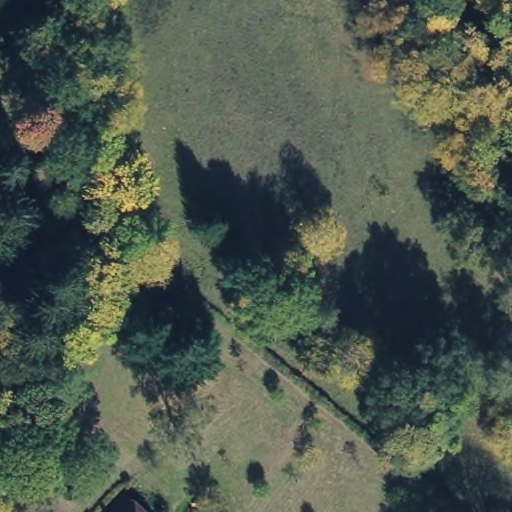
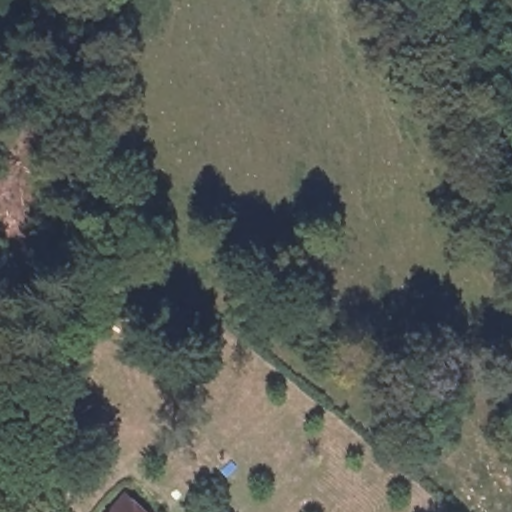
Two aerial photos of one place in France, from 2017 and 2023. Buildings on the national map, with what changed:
unchanged [(144,512),(101,512),(119,492),(144,512)]

